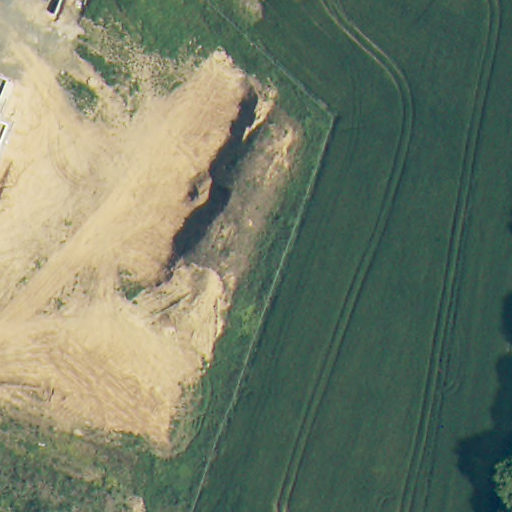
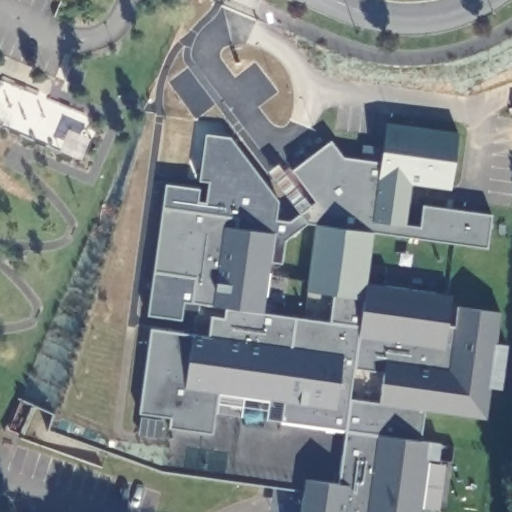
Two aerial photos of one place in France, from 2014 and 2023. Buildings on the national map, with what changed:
unchanged [(0,92),(0,77),(6,79),(0,92)]
unchanged [(0,138),(0,121),(6,124),(0,138)]
new [(237,229),(275,234),(263,313),(331,322),(334,295),(306,292),(317,225),(308,224),(301,214),(317,201),(294,171),(332,142),(345,158),(382,163),(388,123),(460,134),(452,190),(412,185),(406,225),(421,227),(425,207),(493,217),(488,248),(375,233),(367,284),(453,295),(450,325),(456,326),(459,307),(502,313),(497,343),(509,345),(503,390),(491,388),(487,419),(425,411),(420,440),(442,443),(440,460),(427,459),(421,512),(301,512),(303,490),(167,471),(172,428),(169,428),(170,417),(140,412),(151,328),(210,336),(212,318),(225,319),(227,308),(192,302),(195,277),(154,271),(164,208),(238,219),(237,229)]

